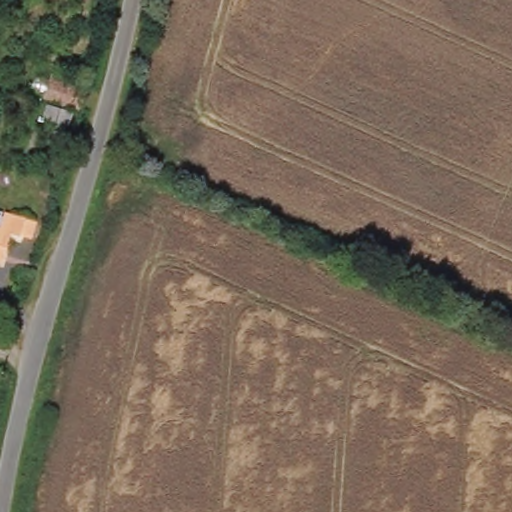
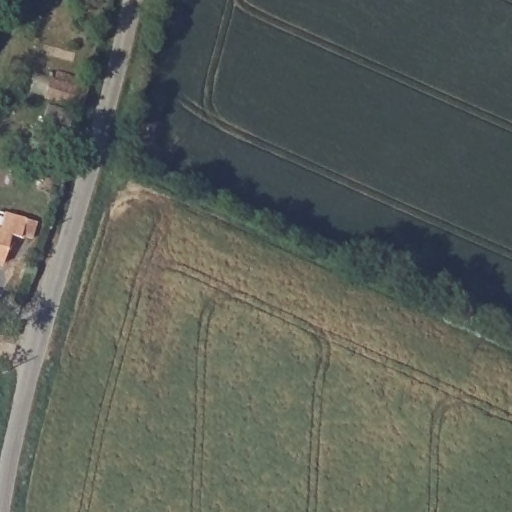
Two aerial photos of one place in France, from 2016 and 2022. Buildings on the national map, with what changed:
unchanged [(73,87),(67,107),(30,95),(35,75),(73,87)]
unchanged [(33,225),(28,241),(6,235),(0,258),(0,216),(1,214),(33,225)]

